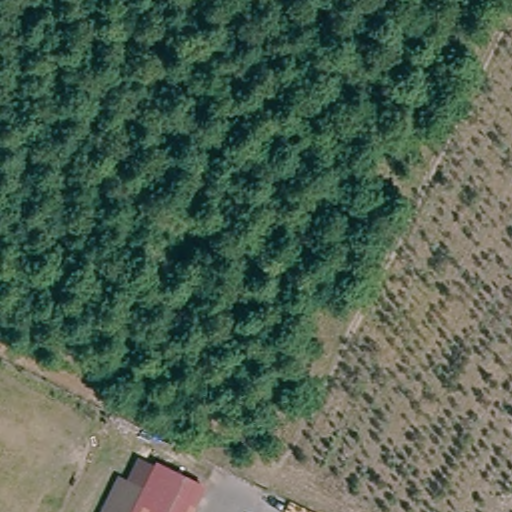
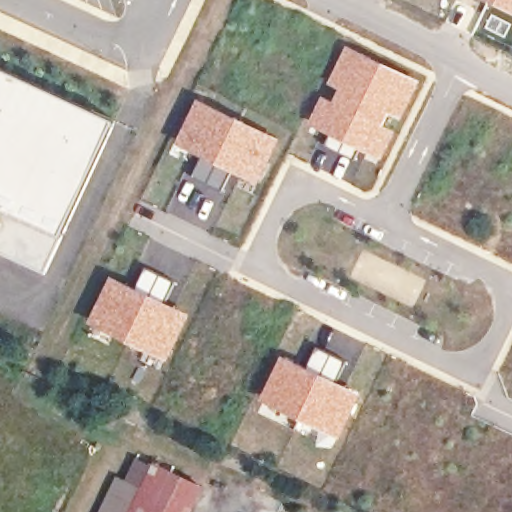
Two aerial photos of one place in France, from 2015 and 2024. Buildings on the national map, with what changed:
new [(483,0),(512,0),(512,13),(483,0)]
new [(321,94),(332,99),(338,89),(326,83),(346,44),(420,80),(402,119),(389,113),(382,125),(395,131),(381,159),(307,124),(321,94)]
new [(61,238),(45,271),(0,247),(0,66),(117,120),(61,238)]
new [(200,103),(277,140),(257,179),(234,169),(223,192),(193,177),(204,154),(181,143),(200,103)]
new [(136,287),(145,268),(173,281),(165,301),(190,314),(167,361),(87,324),(110,276),(136,287)]
new [(306,367),(316,348),(345,362),(336,381),(361,393),(338,438),(258,399),(281,355),(306,367)]
unchanged [(147,499),(160,473),(205,495),(197,512),(116,512),(126,489),(147,499)]

